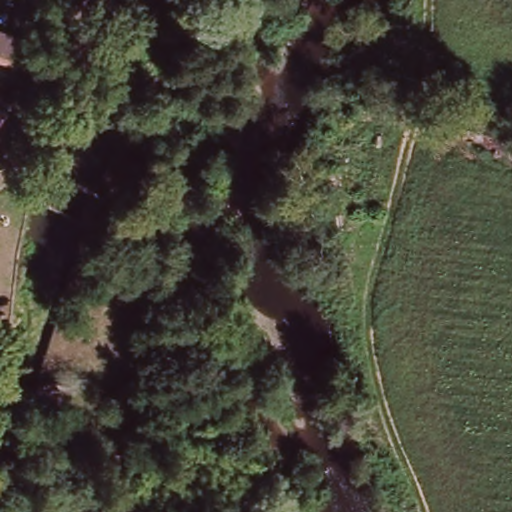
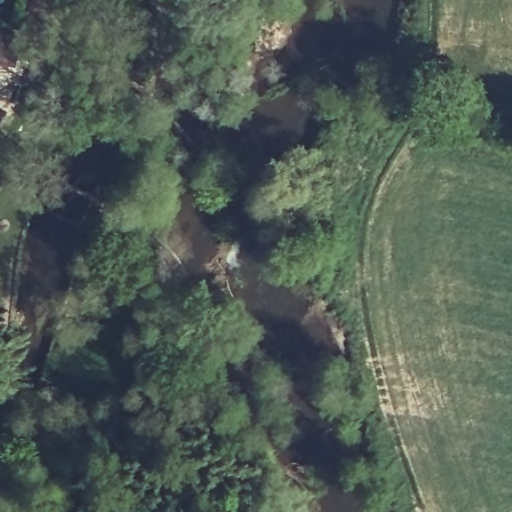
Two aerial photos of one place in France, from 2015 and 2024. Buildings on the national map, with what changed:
unchanged [(0,36),(23,44),(15,64),(0,59),(0,36)]
unchanged [(0,120),(0,113),(3,113),(0,120)]

